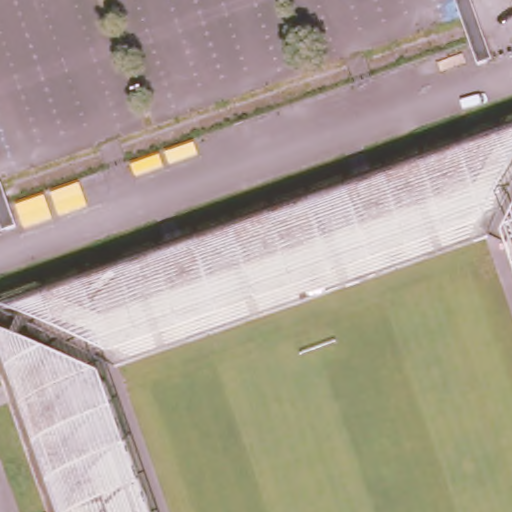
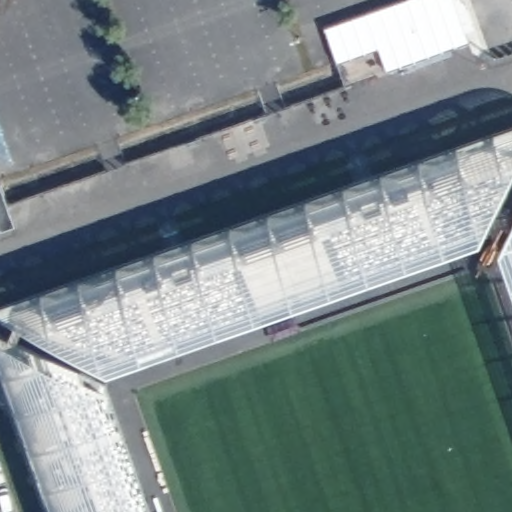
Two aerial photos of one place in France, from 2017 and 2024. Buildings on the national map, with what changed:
new [(385,67),(379,49),(338,63),(325,28),(408,0),(452,0),(467,39),(385,67)]
unchanged [(487,62),(476,65),(453,0),(465,0),(487,62)]
unchanged [(512,148),(22,320),(0,309),(0,297),(512,118),(512,148)]
unchanged [(22,320),(512,148),(512,167),(482,231),(108,362),(22,320)]
unchanged [(15,227),(5,231),(0,215),(0,184),(15,227)]
unchanged [(512,214),(512,273),(500,239),(512,214)]
unchanged [(73,512),(46,512),(0,385),(0,333),(10,337),(73,512)]
unchanged [(99,379),(146,512),(73,512),(10,337),(99,379)]

